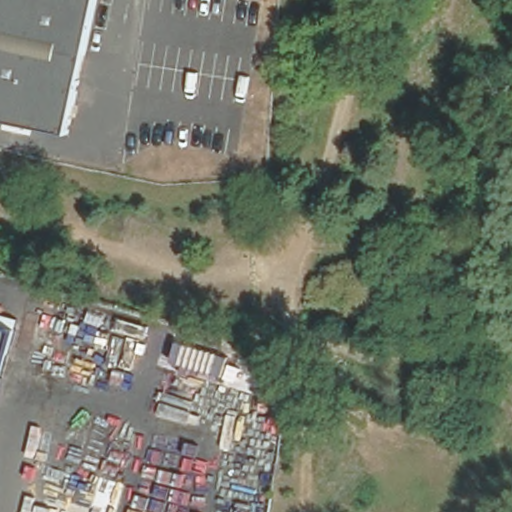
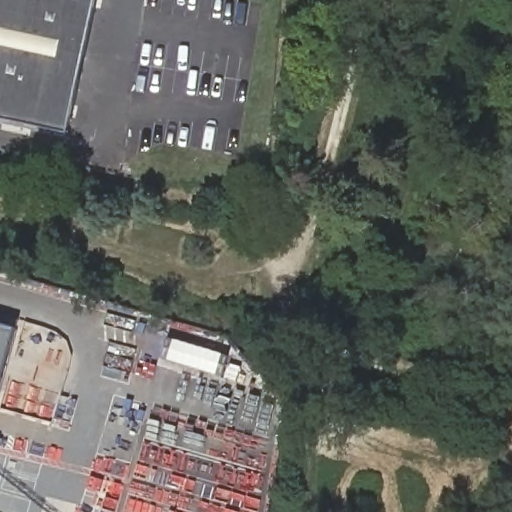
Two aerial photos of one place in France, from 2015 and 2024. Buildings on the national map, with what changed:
unchanged [(0,127),(0,0),(107,0),(75,144),(0,127)]
unchanged [(0,390),(0,324),(16,328),(0,390)]

